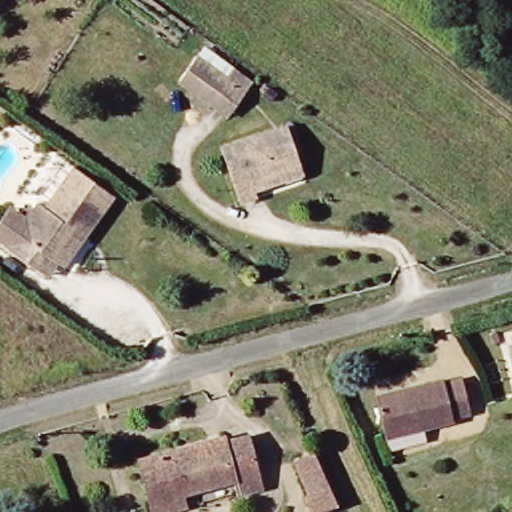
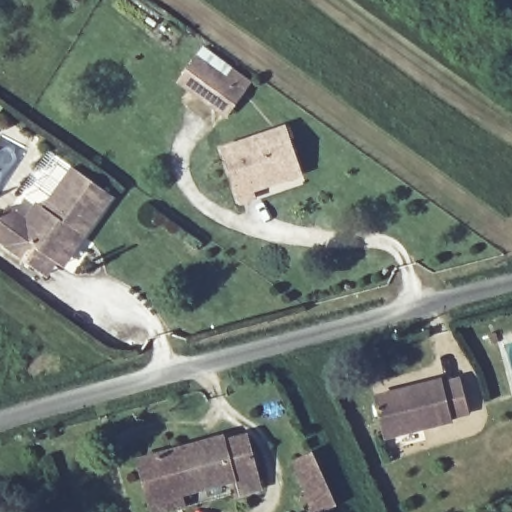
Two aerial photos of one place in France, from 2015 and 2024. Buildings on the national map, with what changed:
unchanged [(226,118),(213,109),(182,83),(199,59),(231,84),(244,91),(226,118)]
unchanged [(272,177),(252,185),(254,191),(238,196),(220,140),(284,120),(298,158),(300,167),(272,177)]
unchanged [(21,259),(3,246),(39,196),(45,201),(71,166),(110,195),(82,233),(63,262),(55,258),(43,275),(21,259)]
unchanged [(444,388),(466,383),(473,411),(456,415),(457,420),(387,441),(377,410),(375,402),(413,390),(442,381),(444,388)]
unchanged [(227,434),(228,440),(245,436),(256,485),(235,490),(233,480),(152,496),(142,453),(227,434)]
unchanged [(310,493),(297,461),(313,453),(335,504),(317,512),(312,512),(304,496),(310,493)]

